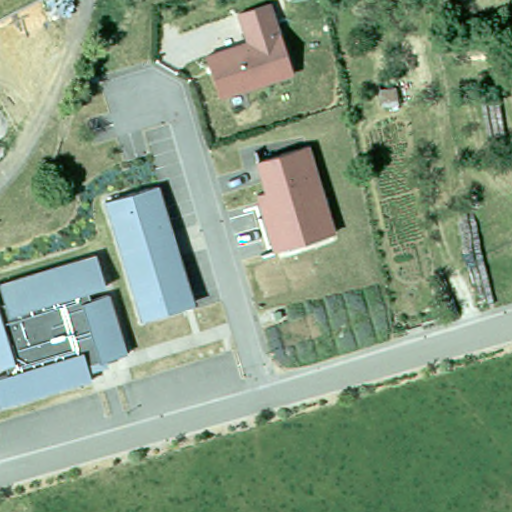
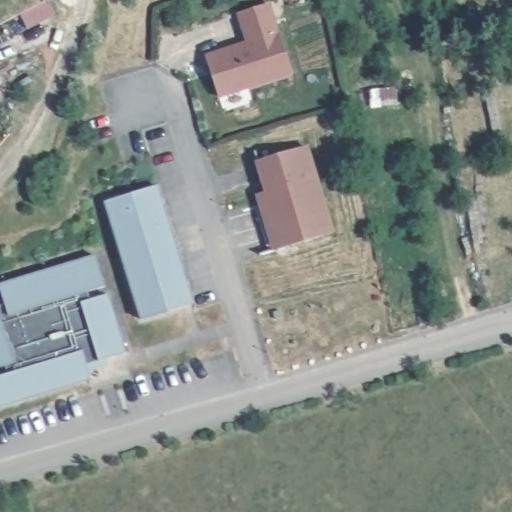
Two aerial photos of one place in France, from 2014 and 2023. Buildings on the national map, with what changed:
unchanged [(291,75),(219,99),(205,53),(245,40),(235,15),(268,4),(291,75)]
unchanged [(335,231),(272,252),(254,194),(263,192),(254,160),(307,146),(335,231)]
unchanged [(188,308),(145,320),(138,300),(140,300),(138,293),(136,293),(115,223),(116,222),(115,214),(112,215),(106,197),(158,180),(165,203),(196,305),(188,308)]
unchanged [(5,306),(0,291),(0,286),(98,255),(108,287),(90,293),(92,300),(110,295),(128,354),(90,367),(93,381),(0,409),(0,382),(11,379),(8,371),(0,373),(0,308),(5,306)]
unchanged [(279,310),(281,318),(275,319),(272,313),(279,310)]

